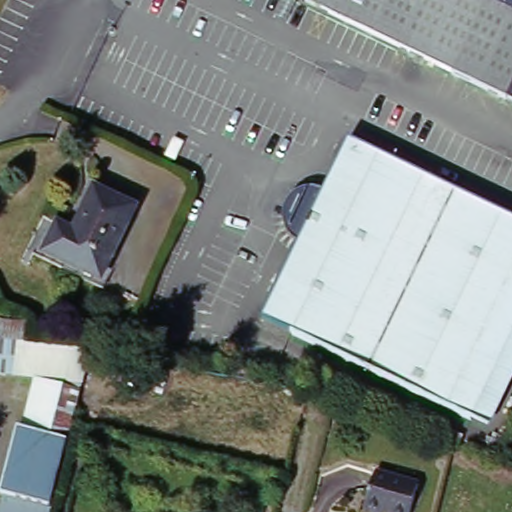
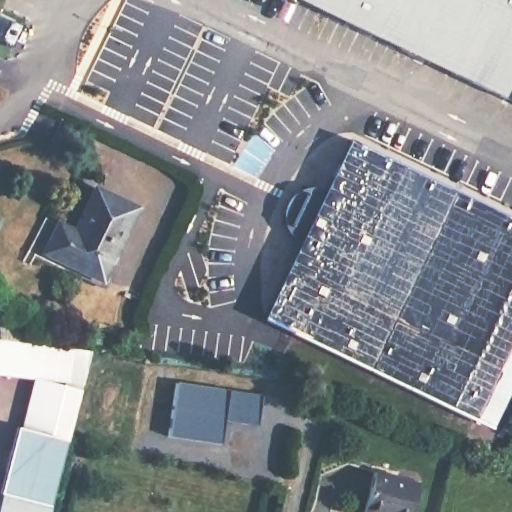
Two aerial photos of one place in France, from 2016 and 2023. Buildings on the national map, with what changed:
unchanged [(289,0),(391,0),(372,39),(289,0)]
unchanged [(391,0),(512,0),(512,106),(372,39),(391,0)]
unchanged [(271,325),(272,324),(308,248),(307,248),(306,247),(305,247),(304,246),(303,245),(302,244),(301,243),(300,243),(299,241),(298,241),(297,240),(297,239),(297,238),(296,237),(296,236),(295,235),(294,234),(294,233),(294,232),(293,231),(293,230),(293,229),(292,228),(292,227),(292,226),(292,225),(292,224),(292,223),(292,221),(292,220),(292,219),(292,218),(292,216),(292,215),(293,214),(293,213),(294,212),(294,211),(294,210),(295,209),(295,208),(296,207),(296,206),(297,205),(297,204),(298,204),(299,203),(299,202),(300,201),(301,201),(302,200),(302,199),(303,198),(304,198),(305,197),(306,197),(307,196),(308,196),(308,195),(310,194),(312,194),(313,193),(314,193),(315,193),(316,193),(317,193),(318,193),(319,193),(320,193),(322,193),(323,193),(324,193),(325,193),(326,193),(327,194),(328,194),(329,194),(330,194),(331,195),(333,196),(336,190),(358,144),(512,219),(512,366),(482,428),(271,325)]
unchanged [(43,254),(53,233),(69,242),(95,189),(135,209),(101,281),(43,254)]
unchanged [(0,320),(26,323),(23,345),(89,353),(88,356),(81,384),(0,374),(0,320)]
unchanged [(24,433),(37,381),(79,392),(71,424),(49,512),(0,512),(0,504),(18,431),(24,433)]
new [(174,381),(260,393),(256,423),(223,418),(220,442),(166,434),(174,381)]
unchanged [(419,486),(412,512),(365,512),(376,473),(419,486)]

